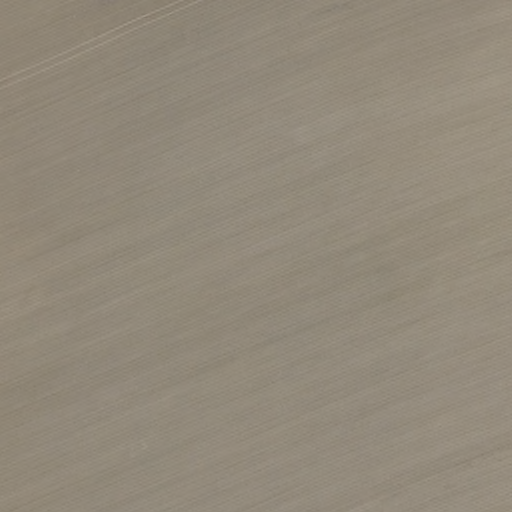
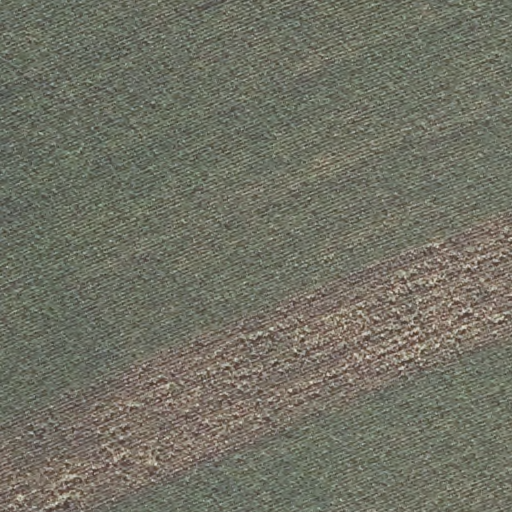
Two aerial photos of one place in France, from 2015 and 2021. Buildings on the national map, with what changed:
[]

